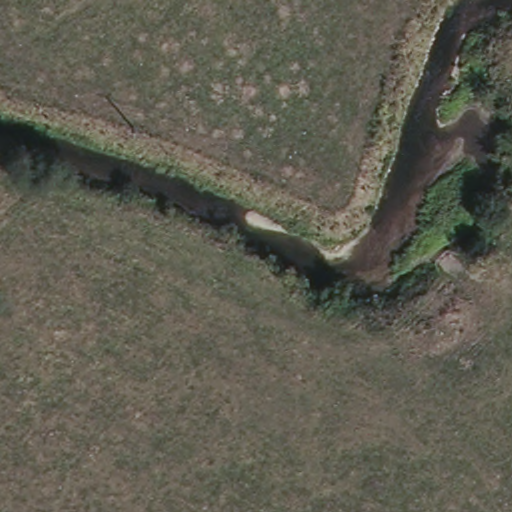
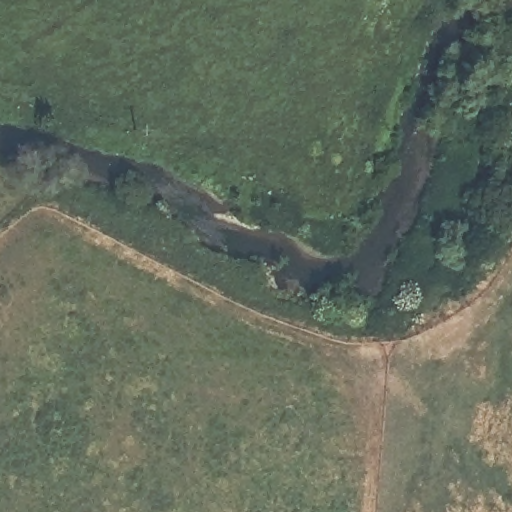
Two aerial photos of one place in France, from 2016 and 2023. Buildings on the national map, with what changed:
[]

